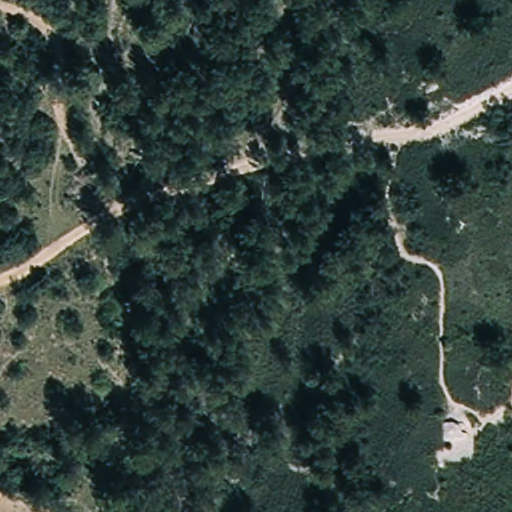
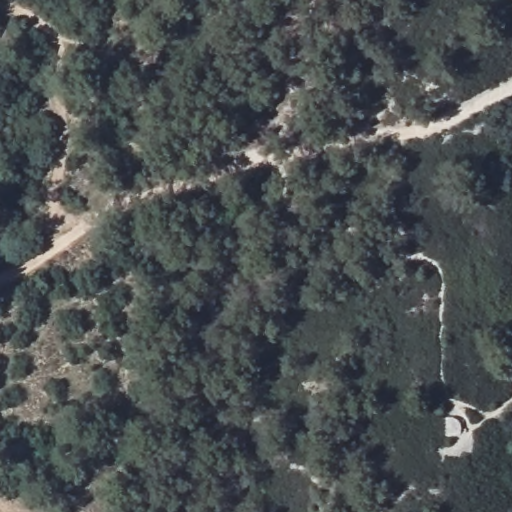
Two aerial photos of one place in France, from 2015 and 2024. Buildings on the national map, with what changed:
unchanged [(457,419),(460,422),(461,425),(461,429),(461,432),(460,436),(448,437),(442,436),(443,419),(453,418),(457,419)]

